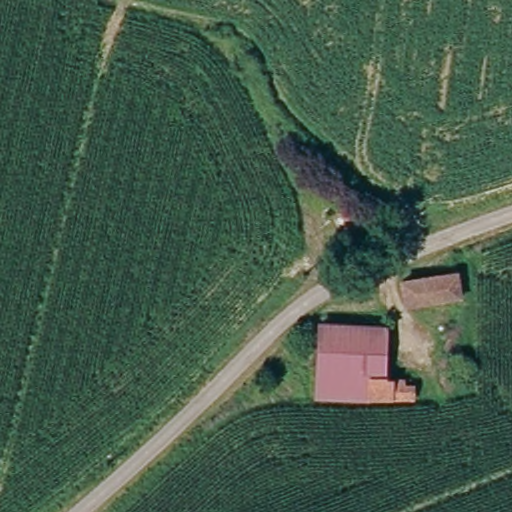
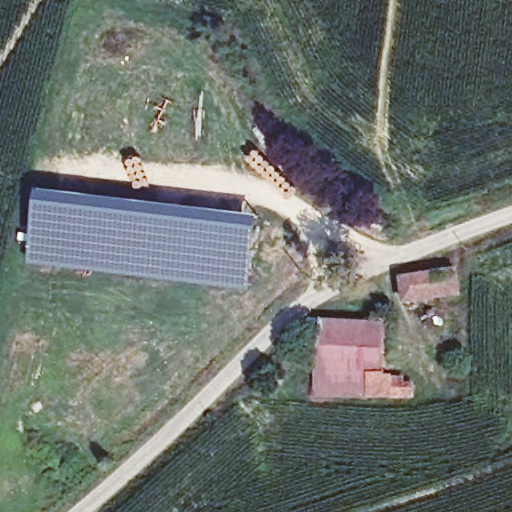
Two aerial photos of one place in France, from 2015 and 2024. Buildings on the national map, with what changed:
new [(251,285),(30,258),(39,188),(260,214),(251,285)]
unchanged [(449,268),(455,292),(401,303),(396,280),(449,268)]
unchanged [(323,328),(382,330),(381,383),(404,383),(404,388),(419,388),(419,401),(322,397),(323,328)]

